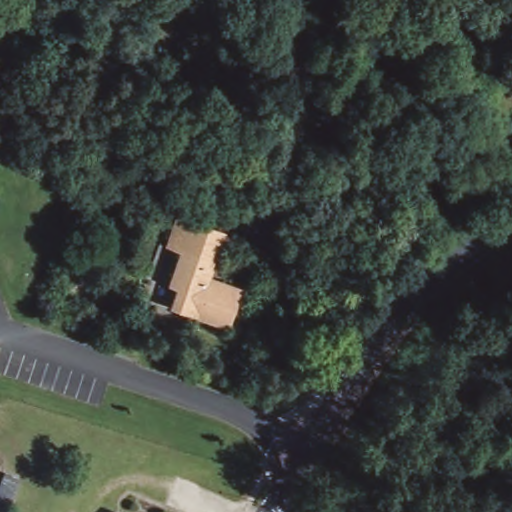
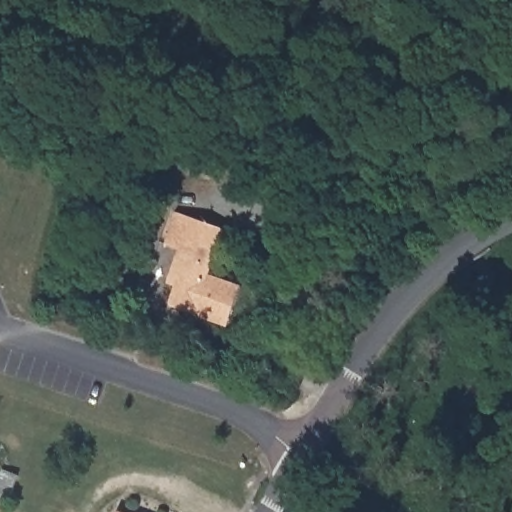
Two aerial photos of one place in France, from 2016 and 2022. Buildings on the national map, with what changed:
unchanged [(214,222),(190,286),(168,279),(176,256),(159,250),(172,207),(214,222)]
unchanged [(220,327),(169,312),(174,295),(164,291),(168,279),(190,286),(214,222),(221,224),(206,269),(242,281),(237,300),(227,330),(220,327)]
unchanged [(0,458),(30,468),(23,487),(15,512),(0,512),(0,458)]

